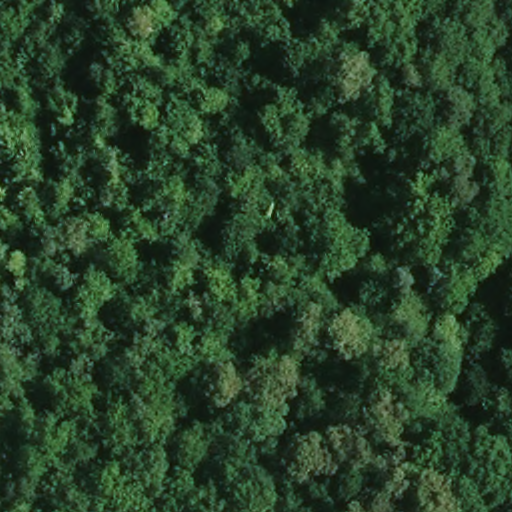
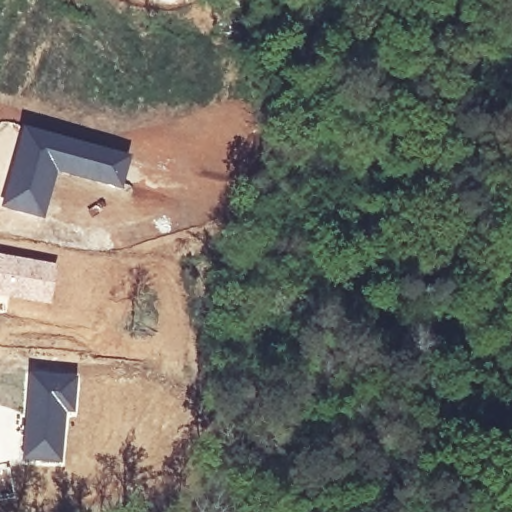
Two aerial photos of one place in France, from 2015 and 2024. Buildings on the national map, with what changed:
new [(21,126),(131,156),(122,190),(58,174),(44,220),(0,207),(0,202),(21,126)]
new [(56,264),(50,305),(0,295),(0,254),(56,264)]
new [(28,368),(78,373),(75,416),(67,416),(63,465),(21,462),(28,368)]

